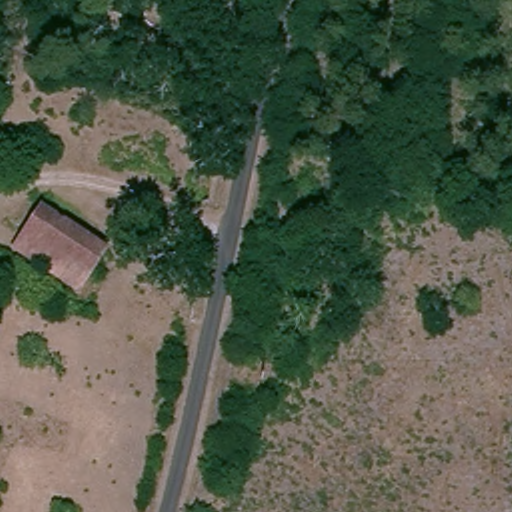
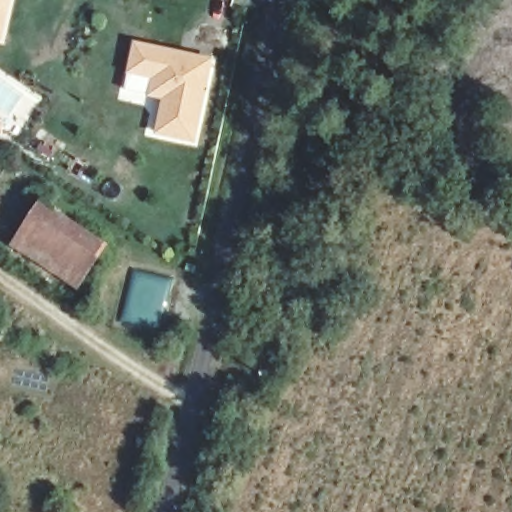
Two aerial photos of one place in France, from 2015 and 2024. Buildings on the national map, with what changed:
new [(2,41),(0,40),(0,0),(10,0),(2,41)]
new [(162,100),(149,97),(151,79),(127,74),(134,41),(215,58),(196,144),(156,135),(162,100)]
unchanged [(109,246),(90,273),(25,227),(42,201),(109,246)]
unchanged [(90,273),(80,287),(14,244),(25,227),(90,273)]
new [(165,279),(155,323),(126,317),(137,272),(165,279)]

